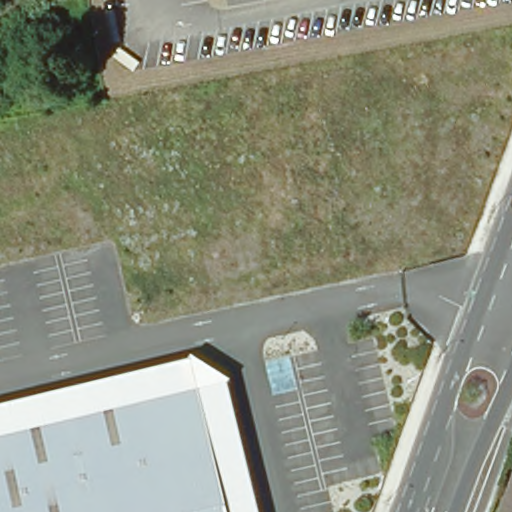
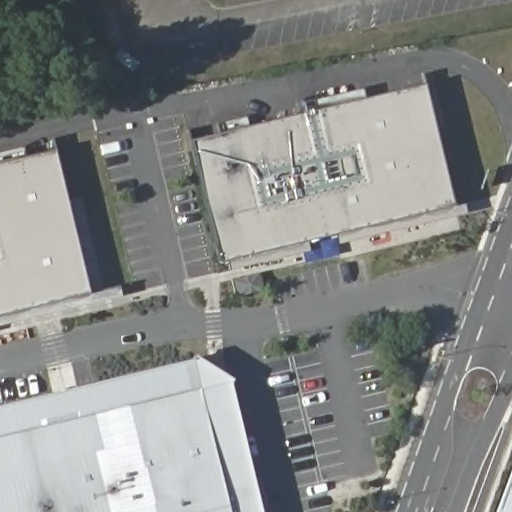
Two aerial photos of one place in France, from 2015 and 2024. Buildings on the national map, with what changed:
new [(468,212),(338,243),(335,233),(309,240),(311,249),(229,270),(228,260),(221,263),(190,139),(220,132),(219,122),(248,116),(250,125),(305,112),(303,103),(365,89),(367,97),(425,83),(456,203),(465,201),(468,212)]
new [(0,325),(0,152),(24,146),(28,155),(55,149),(89,291),(120,285),(123,295),(0,325)]
unchanged [(228,375),(262,512),(0,512),(0,402),(195,355),(228,375)]
demolished [(506,512),(512,495),(512,512),(506,512)]
new [(507,512),(512,498),(512,512),(507,512)]

